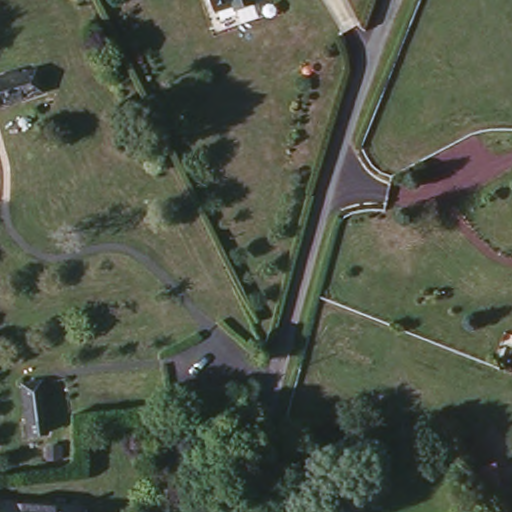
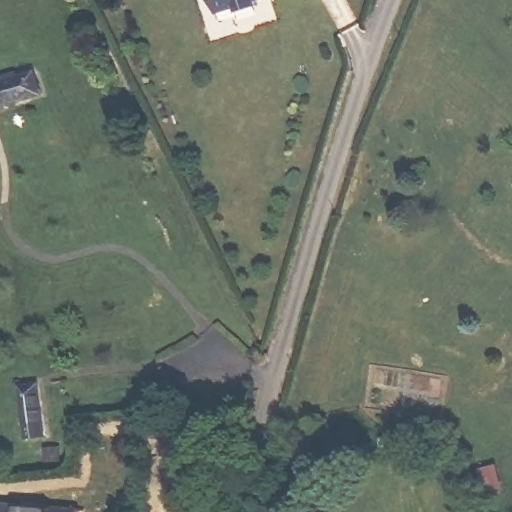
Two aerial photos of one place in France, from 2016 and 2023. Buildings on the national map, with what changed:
unchanged [(256,7),(234,12),(231,4),(213,8),(210,0),(254,0),(256,7)]
unchanged [(0,76),(35,63),(45,90),(0,107),(0,76)]
unchanged [(19,383),(38,381),(44,437),(25,439),(19,383)]
unchanged [(4,501),(80,512),(0,512),(0,506),(3,506),(4,501)]

